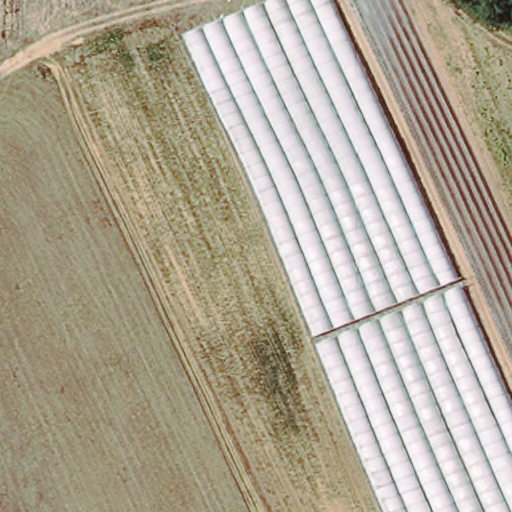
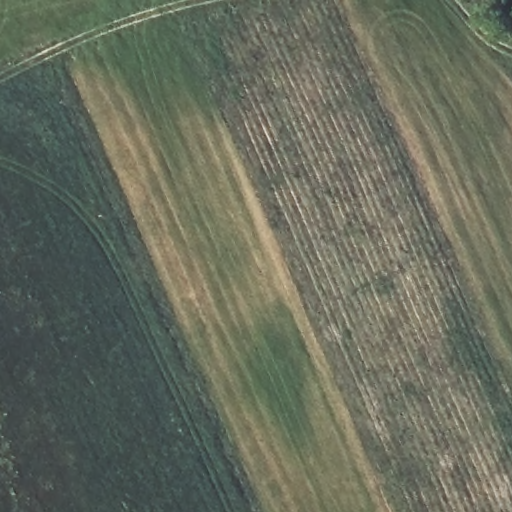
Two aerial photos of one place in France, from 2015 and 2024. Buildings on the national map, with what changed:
demolished [(0,39),(0,0),(109,0),(0,39)]
demolished [(313,336),(268,220),(242,155),(181,32),(264,0),(333,0),(334,3),(341,0),(433,0),(512,59),(512,512),(386,512),(313,336)]

